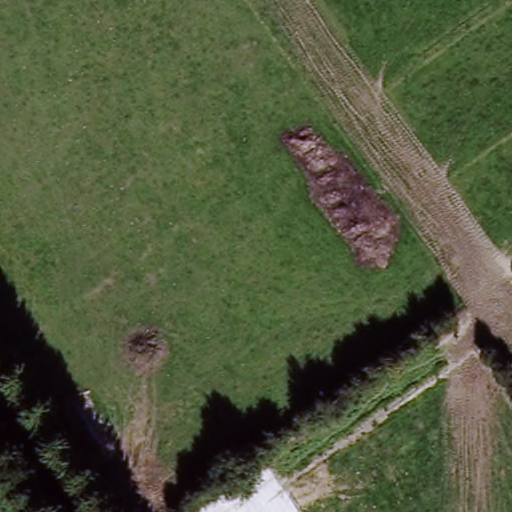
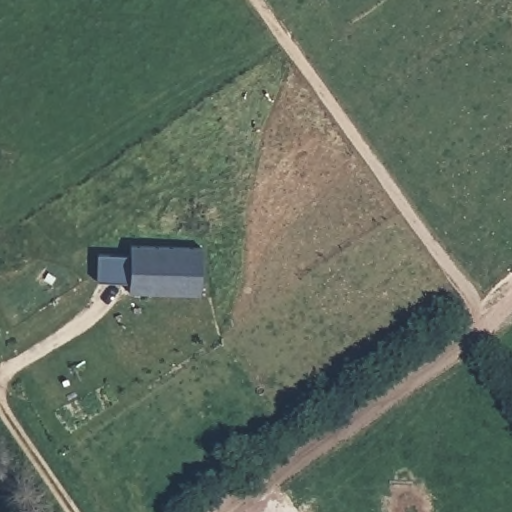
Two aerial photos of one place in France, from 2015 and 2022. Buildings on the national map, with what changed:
new [(202,247),(200,295),(129,293),(130,282),(97,281),(97,255),(130,255),(130,245),(202,247)]

